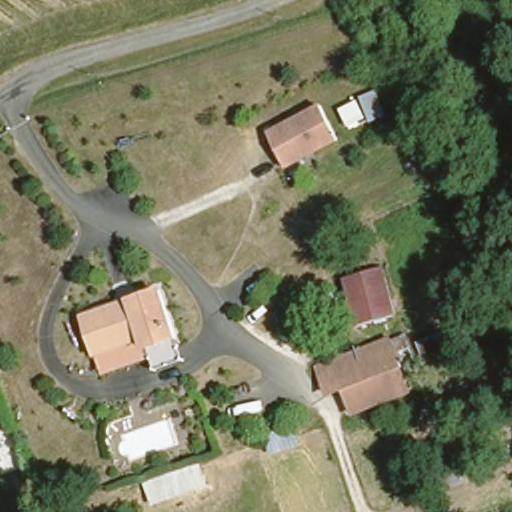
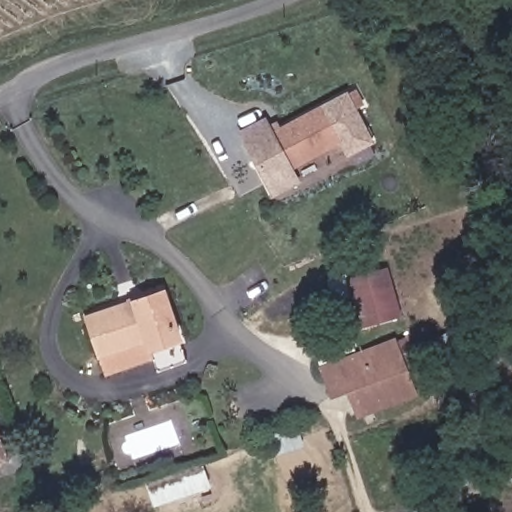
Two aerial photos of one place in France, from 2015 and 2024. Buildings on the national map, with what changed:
new [(323,106),(348,93),(355,89),(363,104),(356,108),(373,141),(347,155),(339,137),(323,106)]
unchanged [(323,106),(339,137),(284,166),(268,135),(323,106)]
new [(299,182),(271,196),(237,130),(265,116),(269,124),(277,120),(280,128),(268,135),(284,166),(289,163),(299,182)]
unchanged [(399,311),(358,322),(346,275),(389,265),(399,311)]
unchanged [(143,350),(139,340),(92,357),(79,323),(155,295),(172,341),(175,350),(146,361),(143,350)]
unchanged [(399,351),(408,380),(334,405),(323,377),(399,351)]
unchanged [(0,464),(0,453),(3,463),(0,464)]

